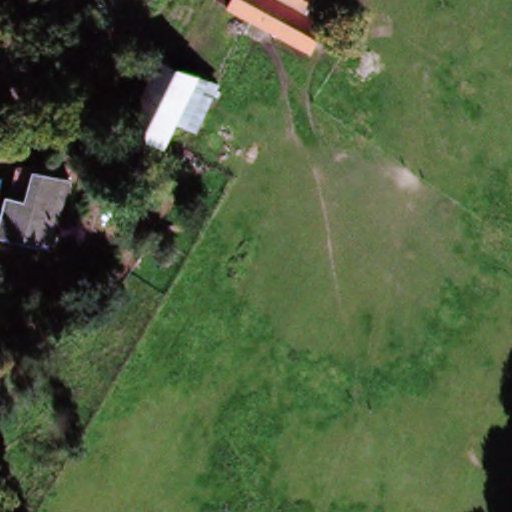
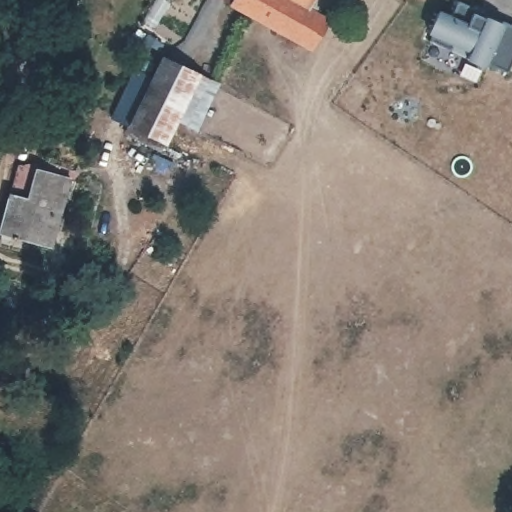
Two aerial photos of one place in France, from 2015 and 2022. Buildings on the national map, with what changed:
unchanged [(219,0),(281,0),(306,15),(331,29),(325,30),(310,55),(219,0)]
unchanged [(306,15),(281,0),(315,0),(306,15)]
new [(439,14),(450,19),(458,2),(485,15),(504,23),(512,27),(512,68),(508,76),(485,66),(484,69),(466,61),(470,54),(453,45),(450,52),(429,43),(432,36),(429,35),(439,14)]
unchanged [(127,137),(133,125),(139,113),(126,107),(138,81),(142,83),(145,75),(154,79),(158,71),(163,60),(199,75),(179,117),(168,142),(162,155),(127,137)]
unchanged [(199,75),(220,85),(199,127),(179,117),(199,75)]
unchanged [(41,168),(74,177),(56,244),(53,254),(1,240),(4,230),(14,194),(23,163),(41,168)]

